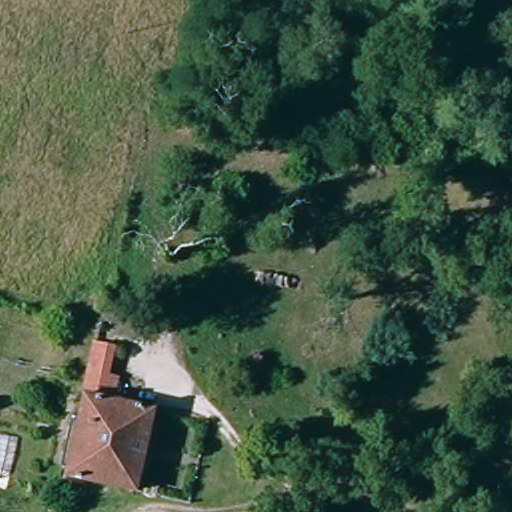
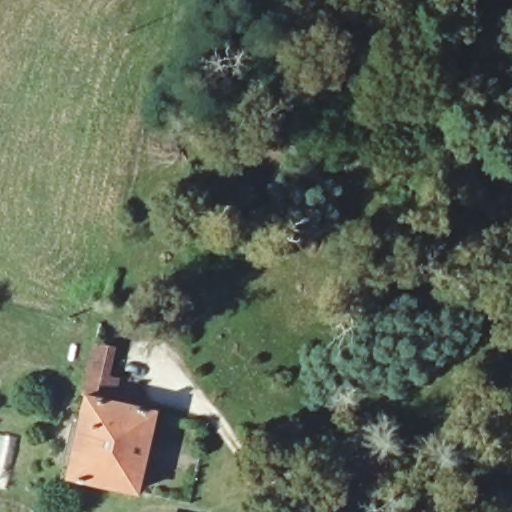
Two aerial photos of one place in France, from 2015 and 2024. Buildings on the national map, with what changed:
unchanged [(109,344),(103,372),(113,374),(109,397),(153,408),(133,494),(63,474),(95,340),(109,344)]

